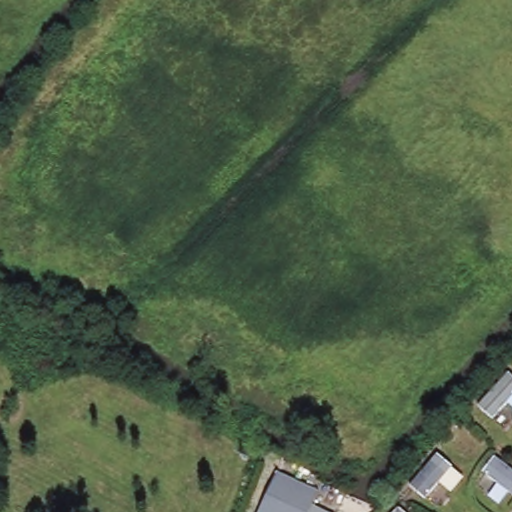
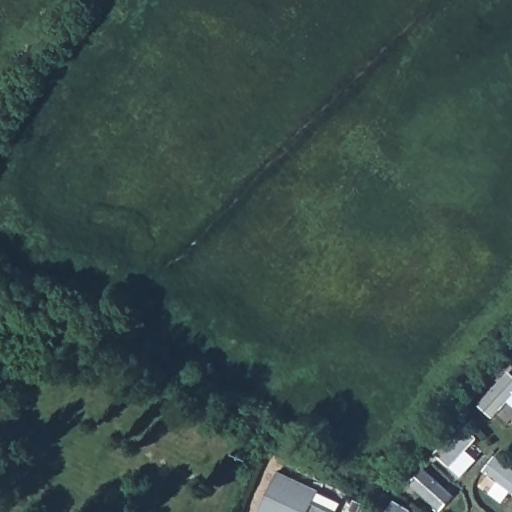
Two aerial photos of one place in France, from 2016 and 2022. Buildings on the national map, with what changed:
unchanged [(321,491),(315,503),(331,512),(260,512),(281,471),(321,491)]

